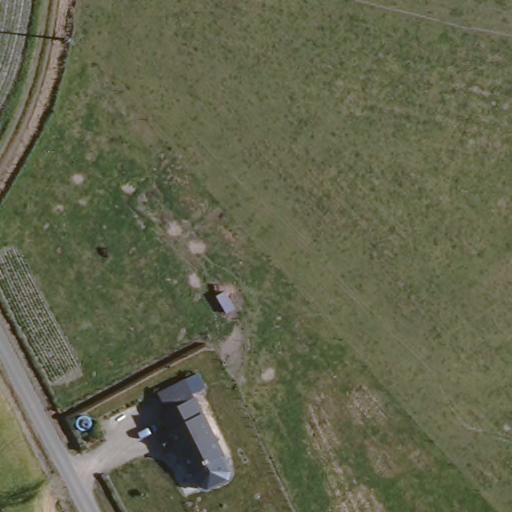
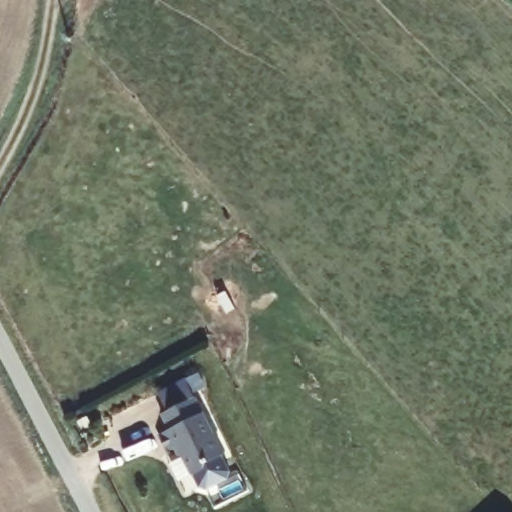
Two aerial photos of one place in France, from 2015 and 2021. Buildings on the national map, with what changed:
unchanged [(182,447),(173,452),(166,430),(175,426),(164,408),(169,405),(161,385),(201,365),(207,381),(189,388),(226,453),(192,470),(182,447)]

